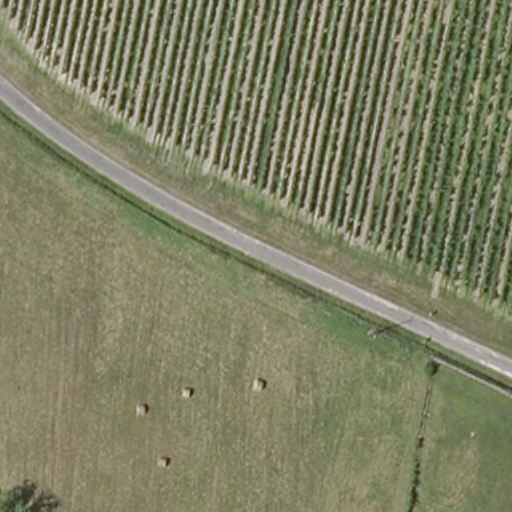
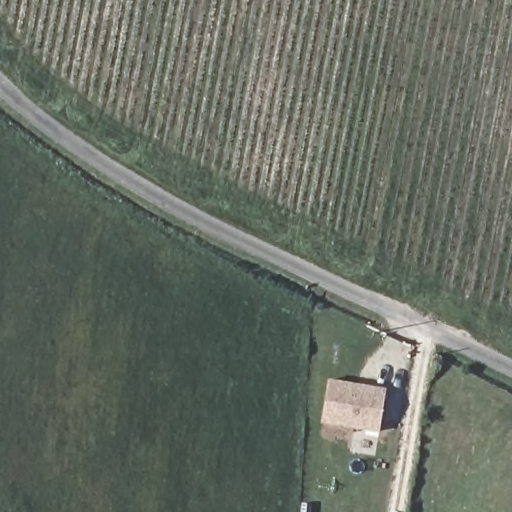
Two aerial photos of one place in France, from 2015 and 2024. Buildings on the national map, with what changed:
new [(322,424),(330,379),(387,389),(380,433),(322,424)]

